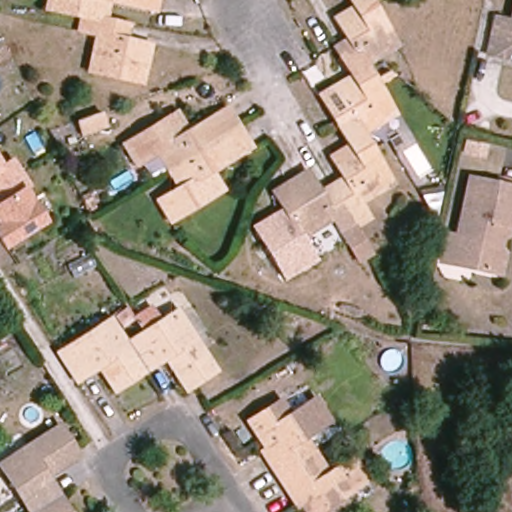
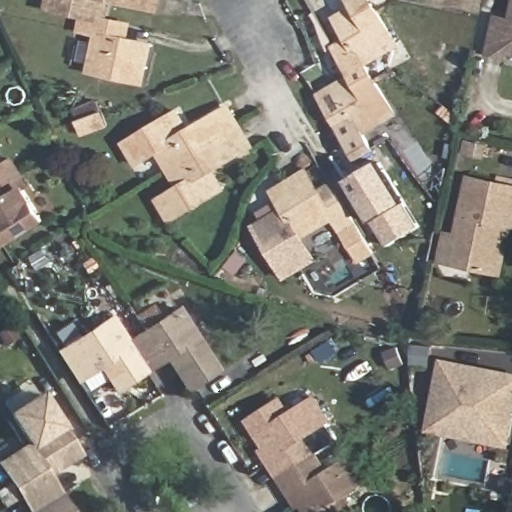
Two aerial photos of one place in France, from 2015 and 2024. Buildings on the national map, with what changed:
unchanged [(102,19),(124,24),(120,38),(152,45),(146,69),(135,66),(131,81),(91,72),(100,36),(79,31),(80,30),(83,30),(83,29),(86,16),(47,7),(49,0),(107,0),(102,19)]
unchanged [(154,7),(121,0),(156,0),(154,7)]
unchanged [(375,9),(376,11),(396,46),(366,64),(373,77),(374,79),(395,114),(363,134),(370,146),(371,147),(393,183),(418,227),(387,246),(378,237),(366,242),(375,256),(358,265),(334,219),(302,238),(317,262),(283,282),(250,229),(279,212),(269,194),(286,182),(307,170),(324,199),(336,191),(348,183),(331,156),(350,145),(336,122),(350,115),(334,87),(353,76),(339,53),(352,46),(336,19),(355,7),(351,0),(371,0),(375,9)]
unchanged [(505,57),(488,54),(496,18),(512,21),(512,53),(506,52),(505,57)]
unchanged [(238,127),(249,147),(207,172),(219,192),(171,221),(159,200),(180,187),(170,169),(159,152),(137,165),(125,144),(173,115),(184,135),(226,108),(238,127)]
unchanged [(81,140),(73,123),(101,111),(109,127),(81,140)]
unchanged [(485,162),(460,156),(463,140),(487,145),(485,162)]
unchanged [(11,156),(31,186),(25,190),(43,220),(4,245),(0,238),(0,165),(11,156)]
unchanged [(505,229),(507,230),(508,231),(509,234),(508,240),(501,273),(451,263),(469,177),(512,186),(512,226),(506,225),(505,229)]
unchanged [(141,331),(132,313),(152,307),(158,321),(141,331)]
unchanged [(190,387),(187,390),(184,386),(171,366),(177,362),(172,354),(160,362),(157,357),(143,367),(145,372),(115,391),(106,376),(112,372),(106,362),(92,372),(90,367),(75,377),(59,352),(78,341),(81,345),(92,337),(90,332),(111,318),(127,343),(145,331),(147,336),(159,327),(156,323),(178,310),(217,370),(190,387)]
new [(425,432),(441,357),(512,372),(512,439),(510,447),(425,432)]
new [(40,391),(60,425),(29,445),(6,412),(40,391)]
unchanged [(308,512),(301,502),(309,496),(303,487),(291,496),(286,487),(290,485),(278,467),(274,469),(269,461),(281,453),(276,445),(267,450),(249,422),(282,401),(290,414),(315,398),(330,421),(305,437),(328,472),(354,456),(368,478),(343,495),(352,509),(347,512),(308,512)]
unchanged [(60,425),(77,452),(80,456),(77,457),(55,471),(51,465),(44,470),(51,482),(47,484),(57,499),(61,497),(71,512),(31,512),(21,497),(25,494),(17,482),(13,485),(0,464),(0,463),(29,445),(60,425)]

